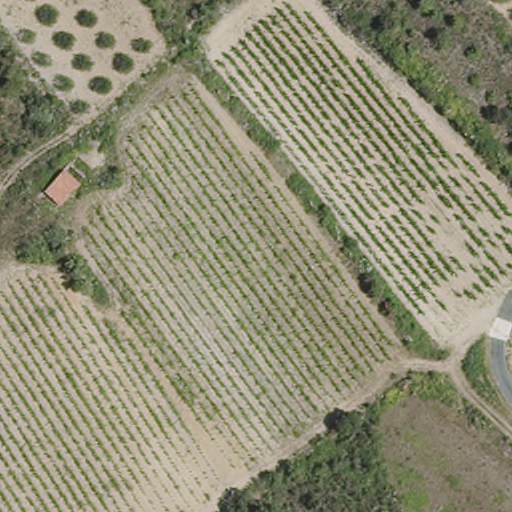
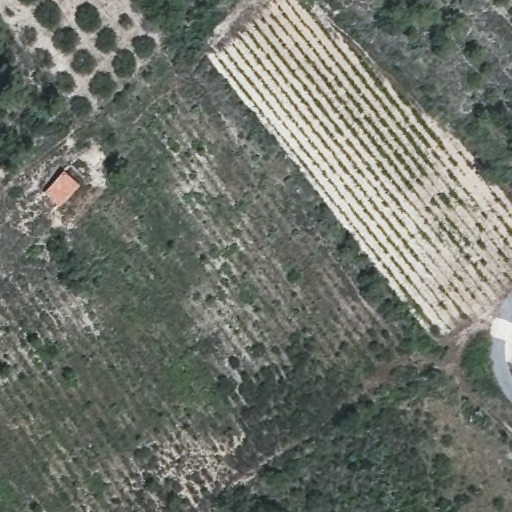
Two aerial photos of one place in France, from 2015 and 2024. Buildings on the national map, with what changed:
unchanged [(78,180),(60,203),(59,204),(42,189),(61,166),(78,180)]

